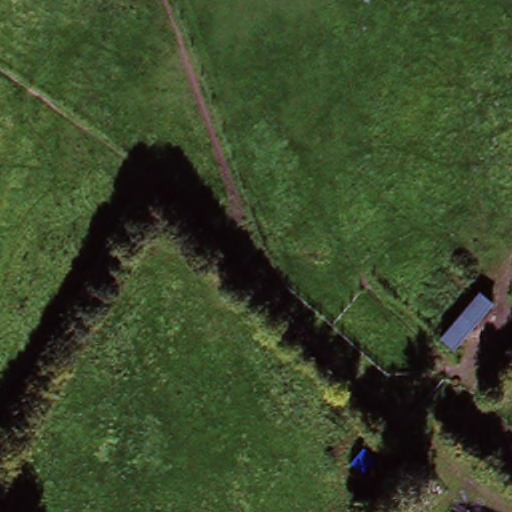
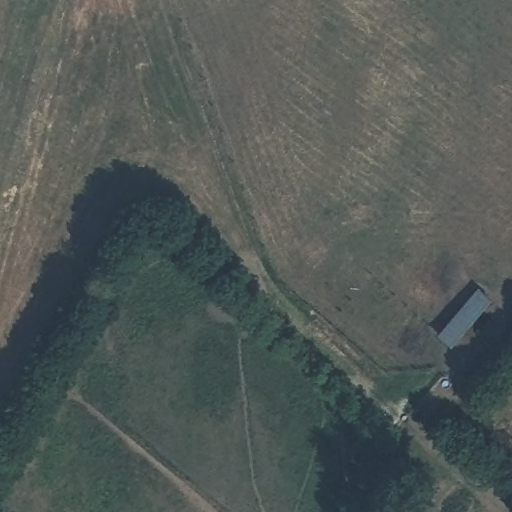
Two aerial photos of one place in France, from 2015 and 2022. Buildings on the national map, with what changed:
unchanged [(491,302),(450,348),(437,336),(476,289),(491,302)]

